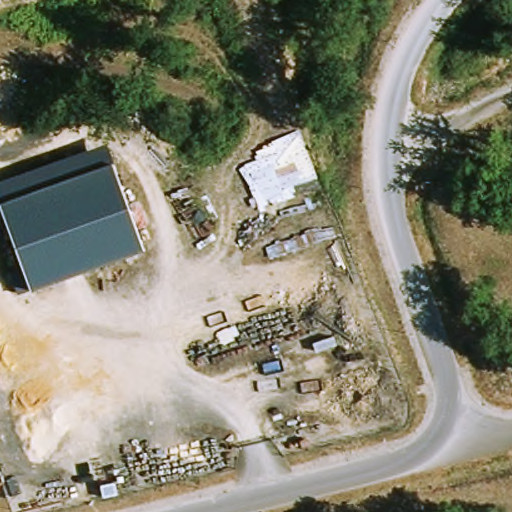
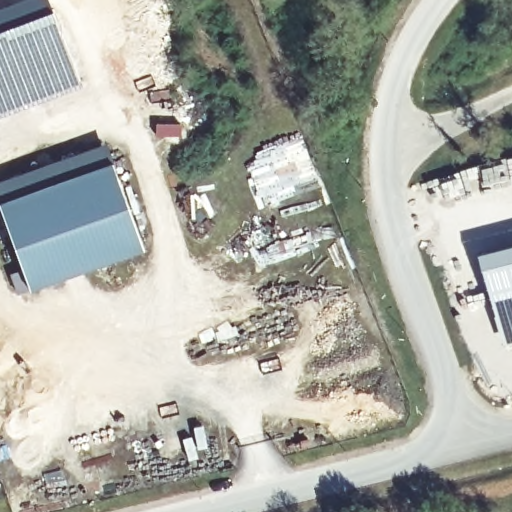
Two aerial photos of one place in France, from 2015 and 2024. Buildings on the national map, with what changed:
new [(52,8),(80,83),(0,111),(0,27),(52,8)]
unchanged [(145,249),(25,288),(7,227),(0,206),(0,199),(90,170),(117,161),(121,172),(139,232),(145,249)]
new [(512,346),(505,347),(480,256),(512,248),(512,346)]

